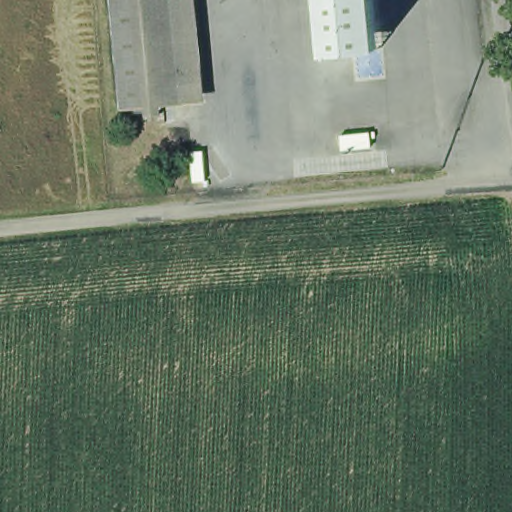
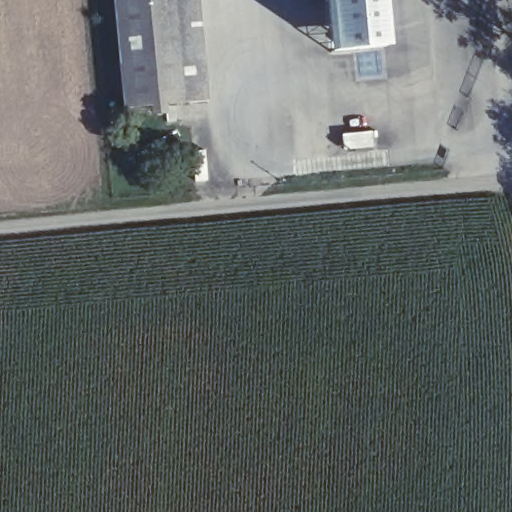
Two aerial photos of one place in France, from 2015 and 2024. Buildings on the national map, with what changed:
unchanged [(171,119),(161,120),(160,109),(128,111),(117,0),(183,0),(193,105),(179,106),(181,124),(172,125),(171,119)]
unchanged [(325,0),(377,0),(382,50),(331,56),(325,0)]

